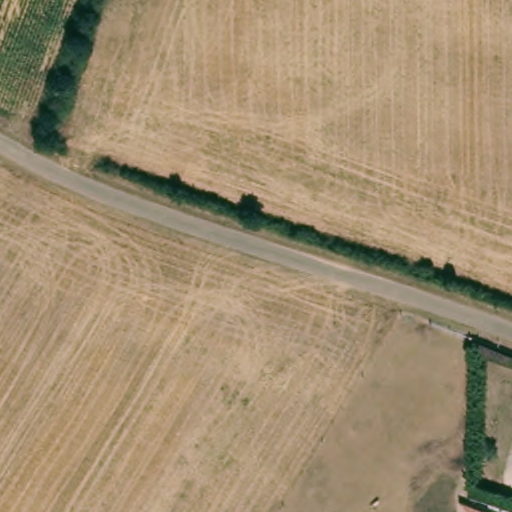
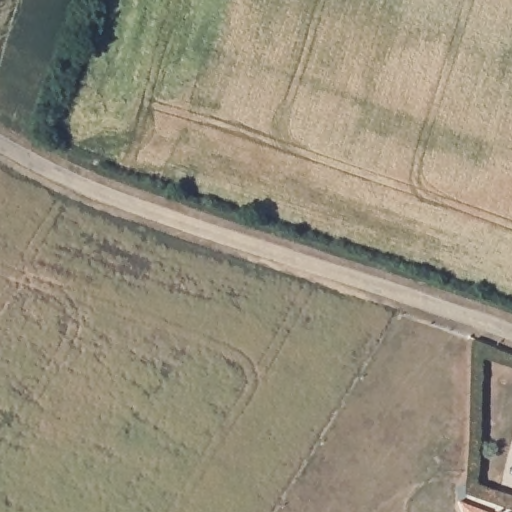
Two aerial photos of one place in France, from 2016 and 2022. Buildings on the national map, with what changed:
unchanged [(466,502),(488,511),(488,512),(464,512),(459,499),(466,502)]

